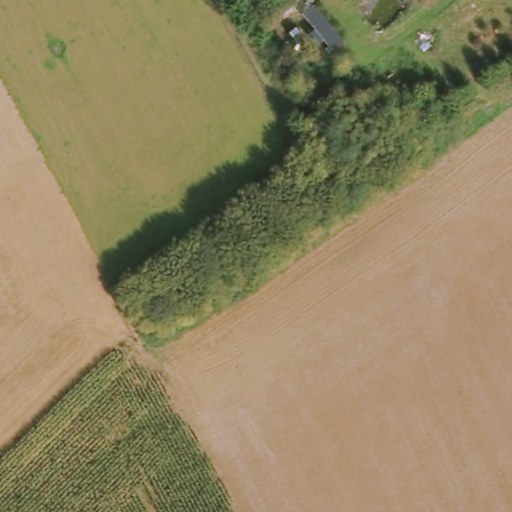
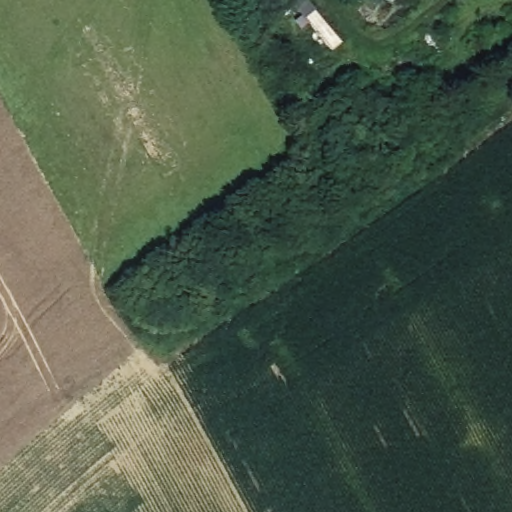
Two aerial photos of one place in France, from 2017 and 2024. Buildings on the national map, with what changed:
unchanged [(329,53),(305,17),(317,5),(346,42),(329,53)]

